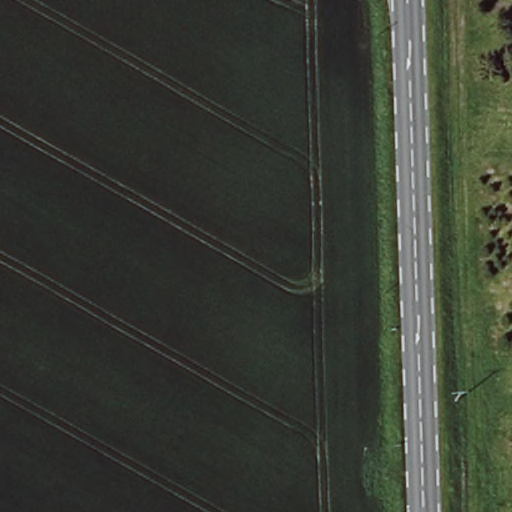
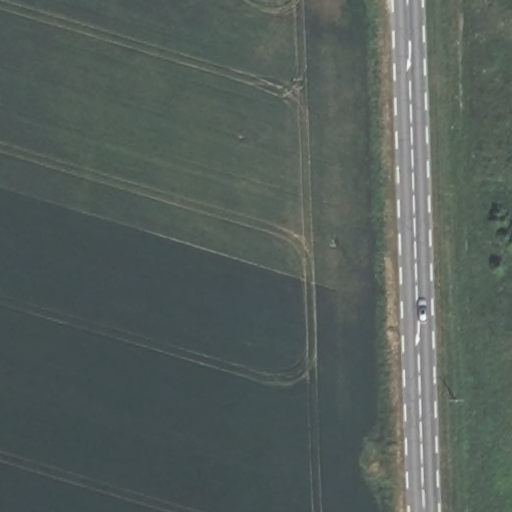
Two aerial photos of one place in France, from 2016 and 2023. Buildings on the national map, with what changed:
[]

